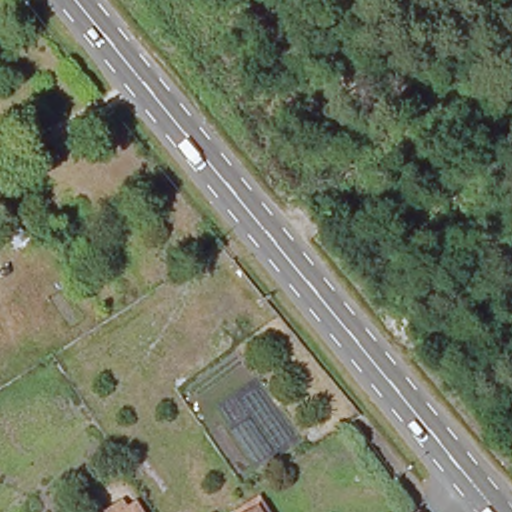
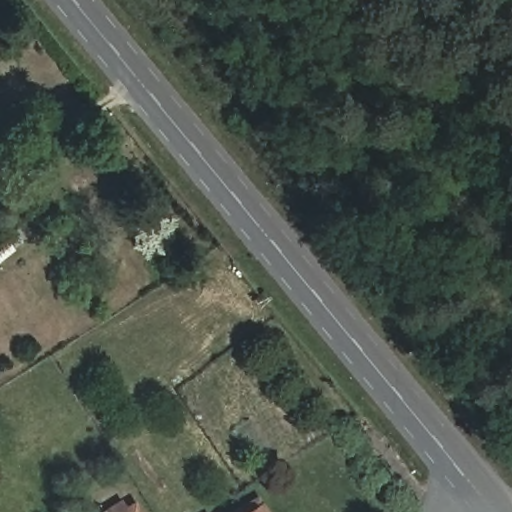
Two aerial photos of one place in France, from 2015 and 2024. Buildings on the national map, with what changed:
unchanged [(148,512),(110,512),(140,496),(148,512)]
unchanged [(265,512),(236,512),(258,499),(265,512)]
unchanged [(213,512),(212,512),(213,511),(213,512)]

